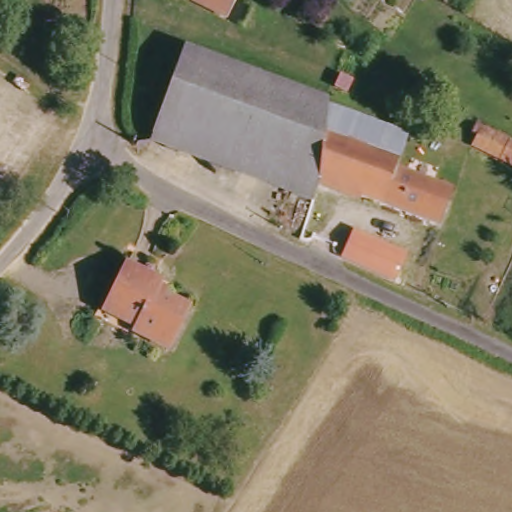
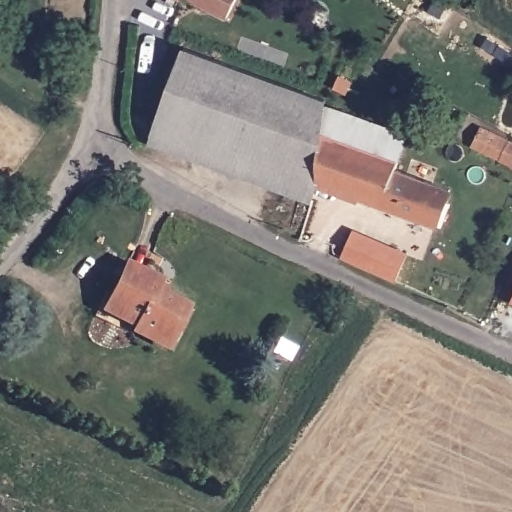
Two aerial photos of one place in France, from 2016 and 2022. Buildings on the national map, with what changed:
unchanged [(222,21),(180,0),(233,0),(222,21)]
unchanged [(317,126),(315,178),(307,196),(145,135),(180,43),(322,95),(319,102),(400,130),(392,154),(317,126)]
unchanged [(512,142),(512,165),(471,145),(477,134),(472,132),(475,124),(512,142)]
unchanged [(392,154),(389,163),(375,200),(315,178),(317,126),(392,154)]
unchanged [(445,184),(432,220),(375,200),(389,163),(445,184)]
unchanged [(351,231),(405,257),(395,278),(340,254),(351,231)]
unchanged [(128,314),(98,299),(117,259),(152,276),(147,286),(180,301),(159,343),(122,325),(128,314)]

